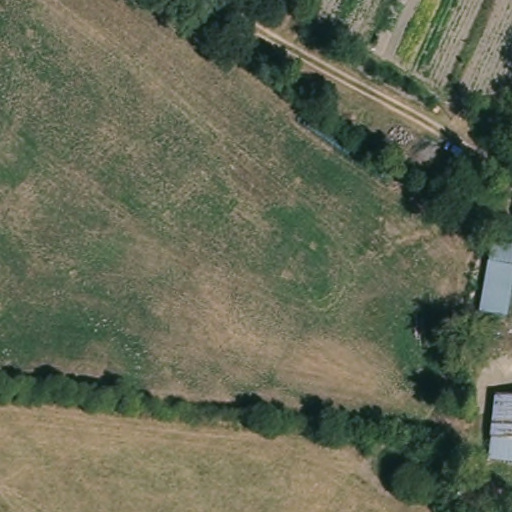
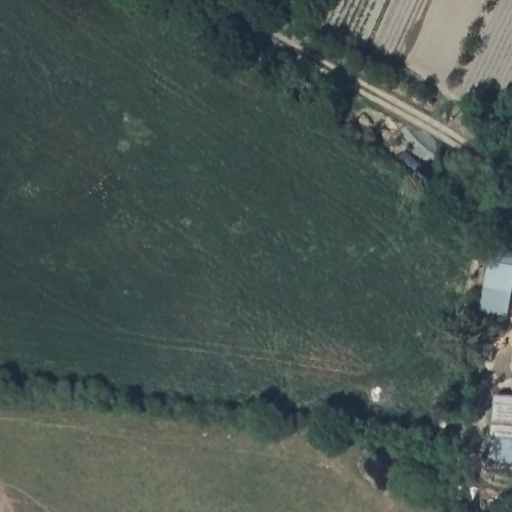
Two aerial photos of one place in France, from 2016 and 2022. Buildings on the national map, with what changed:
unchanged [(500,397),(512,398),(512,443),(490,441),(500,397)]

